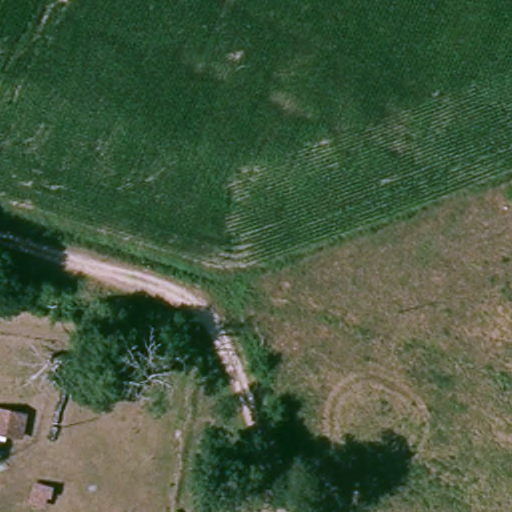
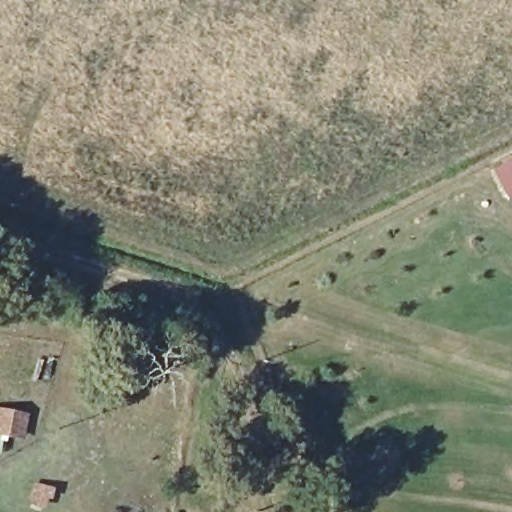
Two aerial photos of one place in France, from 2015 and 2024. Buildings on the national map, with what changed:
new [(512,157),(512,194),(505,198),(492,167),(512,157)]
unchanged [(9,415),(39,423),(36,435),(5,426),(9,415)]

